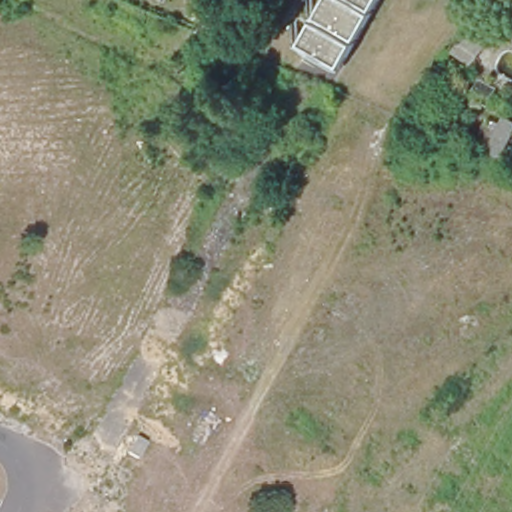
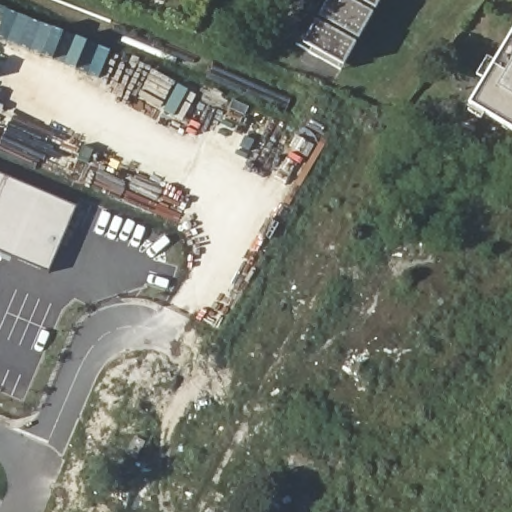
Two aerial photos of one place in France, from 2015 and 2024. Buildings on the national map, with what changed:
unchanged [(337,68),(296,47),(323,0),(375,0),(337,68)]
demolished [(466,28),(486,41),(467,64),(449,51),(466,28)]
new [(512,32),(512,129),(470,104),(512,32)]
new [(79,206),(50,273),(0,251),(0,171),(79,206)]

